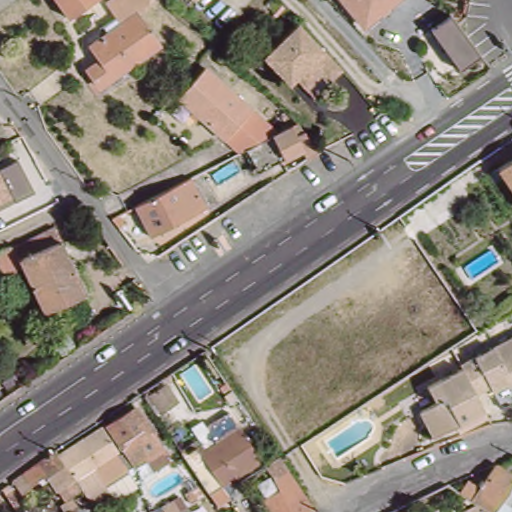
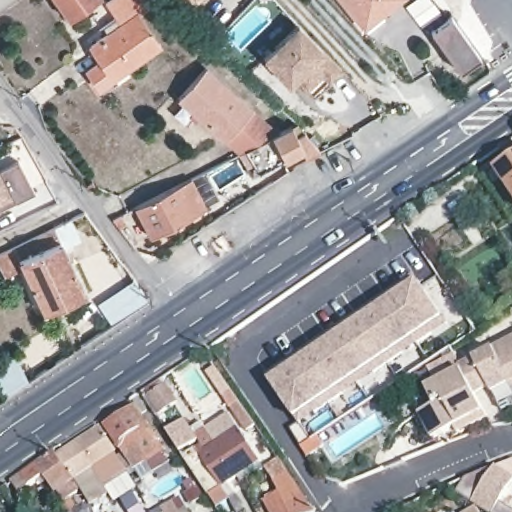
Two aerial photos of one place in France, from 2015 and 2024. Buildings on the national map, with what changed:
unchanged [(72,19),(59,0),(100,0),(72,19)]
unchanged [(104,61),(95,46),(117,30),(107,16),(131,0),(132,0),(163,46),(103,88),(92,70),(104,61)]
unchanged [(363,26),(341,0),(396,0),(363,26)]
unchanged [(443,17),(474,56),(454,72),(423,32),(443,17)]
unchanged [(305,87),(294,76),(282,76),(262,55),(297,22),(340,68),(327,80),(312,95),(305,87)]
unchanged [(211,67),(283,134),(254,149),(243,154),(183,97),(211,67)]
unchanged [(308,151),(267,172),(254,149),(283,134),(297,127),(302,134),(308,131),(325,152),(313,159),(308,151)]
unchanged [(512,157),(512,186),(498,166),(512,157)]
unchanged [(195,217),(155,237),(140,207),(177,189),(197,179),(212,209),(195,217)]
unchanged [(65,308),(62,301),(40,311),(18,265),(12,252),(53,232),(55,231),(61,245),(85,298),(65,308)]
new [(414,275),(448,323),(301,424),(267,376),(414,275)]
unchanged [(497,394),(485,402),(467,374),(512,344),(512,391),(500,398),(497,394)]
unchanged [(461,427),(443,439),(427,415),(442,406),(432,391),(463,370),(467,374),(485,402),(493,413),(478,423),(465,432),(461,427)]
unchanged [(147,398),(167,385),(177,401),(157,413),(147,398)]
unchanged [(152,467),(147,458),(132,467),(130,465),(105,425),(135,406),(153,434),(162,448),(167,456),(152,467)]
unchanged [(232,488),(222,495),(193,450),(203,443),(205,442),(209,447),(246,425),(268,457),(228,482),(231,487),(232,488)]
unchanged [(136,486),(113,500),(108,492),(93,502),(87,493),(61,453),(101,428),(117,452),(115,453),(125,468),(103,483),(125,469),(136,486)]
unchanged [(14,477),(22,472),(55,450),(80,489),(63,498),(47,473),(30,484),(22,490),(14,477)]
unchanged [(288,491),(268,461),(278,455),(313,507),(295,512),(275,512),(270,503),(288,491)]
unchanged [(487,512),(477,506),(503,468),(512,475),(512,497),(502,512),(487,512)]
unchanged [(173,512),(180,507),(184,512),(173,512)]

